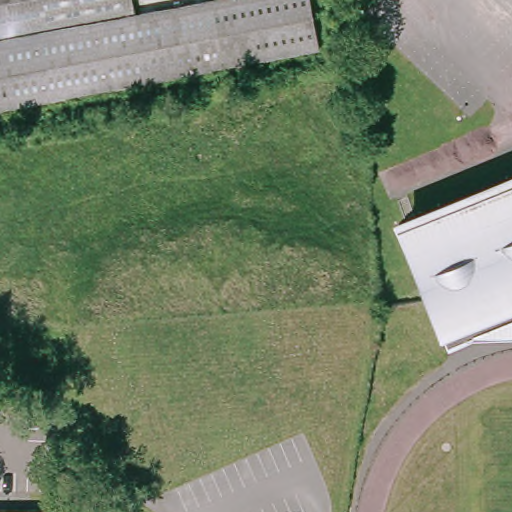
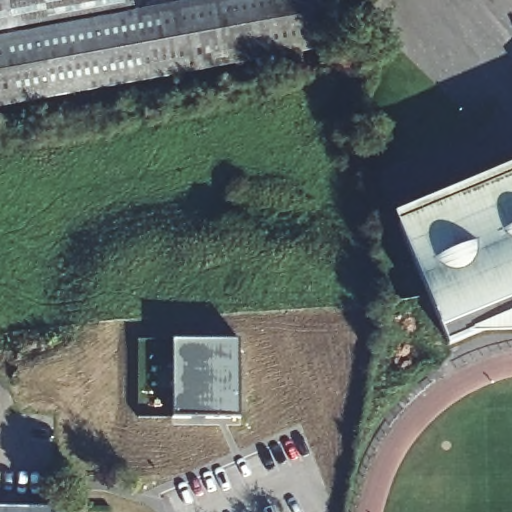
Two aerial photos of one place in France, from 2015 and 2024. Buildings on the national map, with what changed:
unchanged [(130,7),(0,30),(0,0),(129,0),(130,7)]
unchanged [(317,41),(319,49),(243,63),(0,106),(0,37),(208,0),(310,0),(317,41)]
unchanged [(512,174),(512,326),(482,327),(446,342),(430,301),(417,269),(397,220),(512,174)]
new [(173,341),(240,342),(240,419),(172,419),(173,341)]
unchanged [(0,512),(0,507),(49,507),(49,512),(0,512)]

